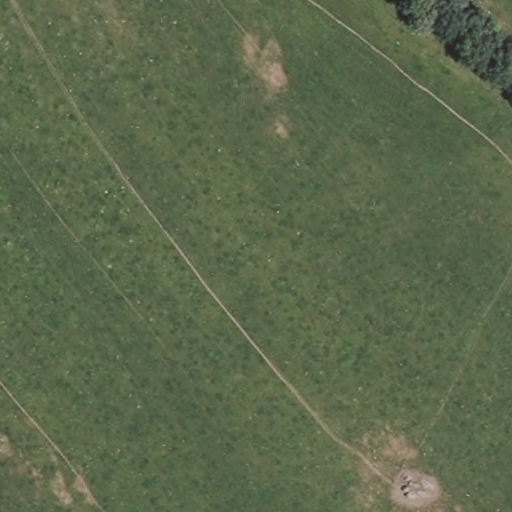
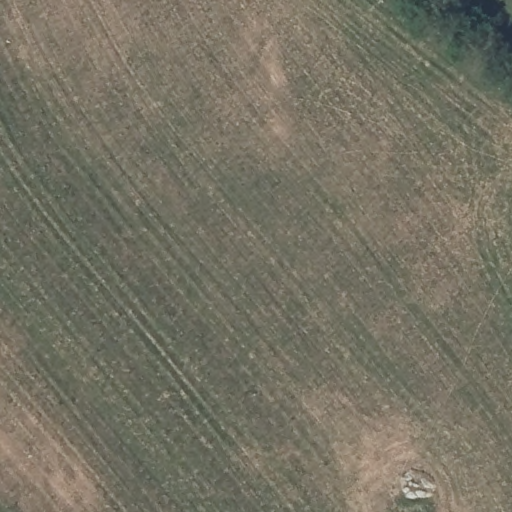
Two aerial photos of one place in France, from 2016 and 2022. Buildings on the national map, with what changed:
[]

